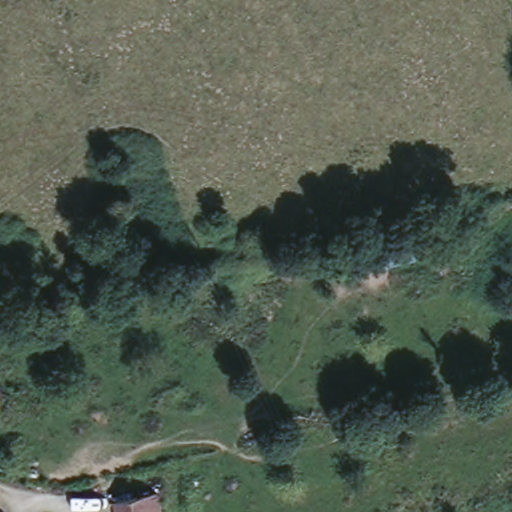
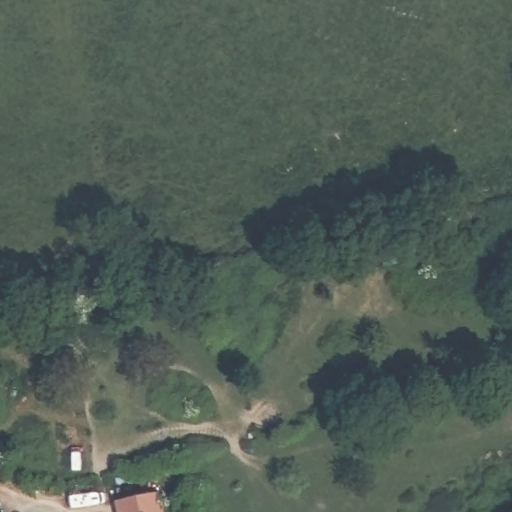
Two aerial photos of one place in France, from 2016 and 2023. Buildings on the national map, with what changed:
unchanged [(381,244),(417,233),(424,253),(387,264),(381,244)]
unchanged [(15,334),(12,318),(63,308),(66,324),(15,334)]
unchanged [(155,487),(159,509),(152,511),(152,512),(117,512),(114,493),(155,487)]

